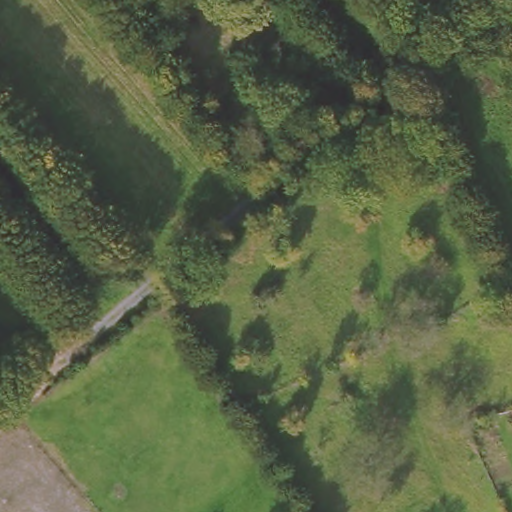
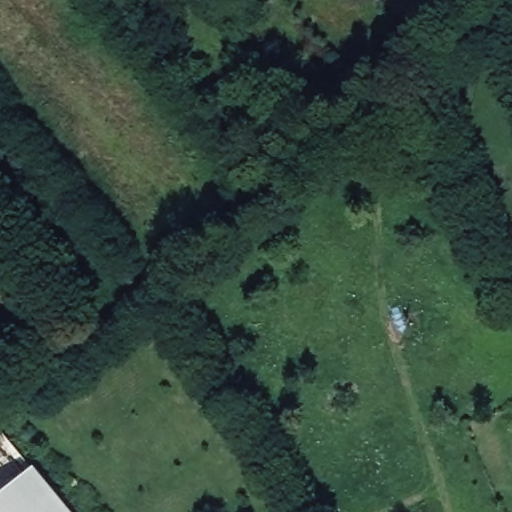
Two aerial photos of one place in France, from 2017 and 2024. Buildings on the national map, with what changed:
new [(46,484),(69,512),(0,512),(0,498),(33,470),(46,484)]

